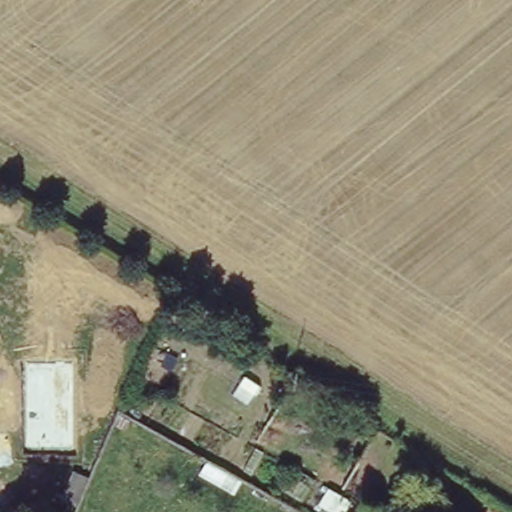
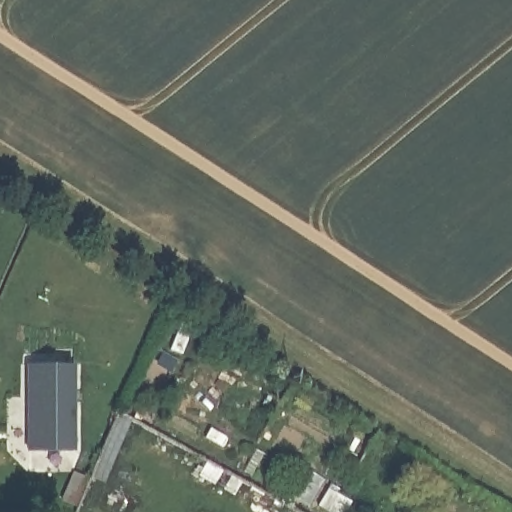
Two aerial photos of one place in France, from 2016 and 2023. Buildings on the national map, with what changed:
new [(29,360),(74,360),(74,446),(29,446),(29,360)]
unchanged [(64,489),(75,462),(88,467),(76,494),(64,489)]
unchanged [(507,511),(509,512),(506,512),(507,511)]

